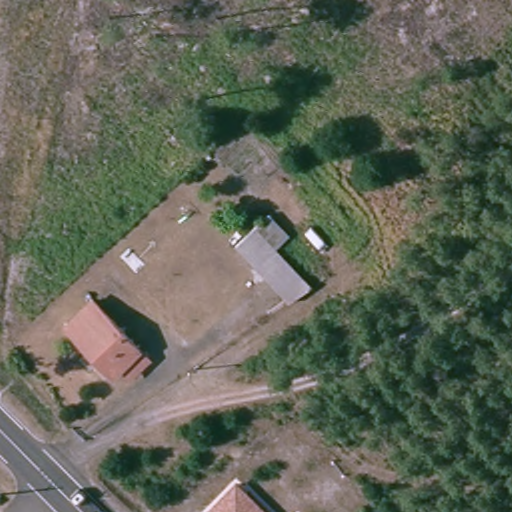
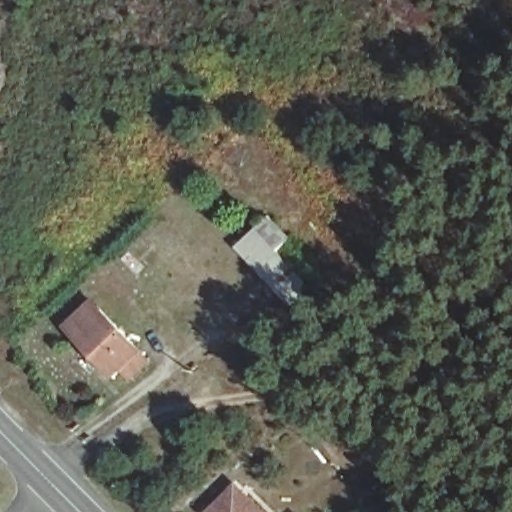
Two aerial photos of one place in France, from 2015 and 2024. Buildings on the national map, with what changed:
unchanged [(231,252),(265,211),(289,239),(279,249),(315,285),(286,307),(231,252)]
unchanged [(154,363),(134,387),(120,373),(111,382),(59,332),(84,301),(154,363)]
unchanged [(230,485),(258,512),(203,512),(230,485)]

